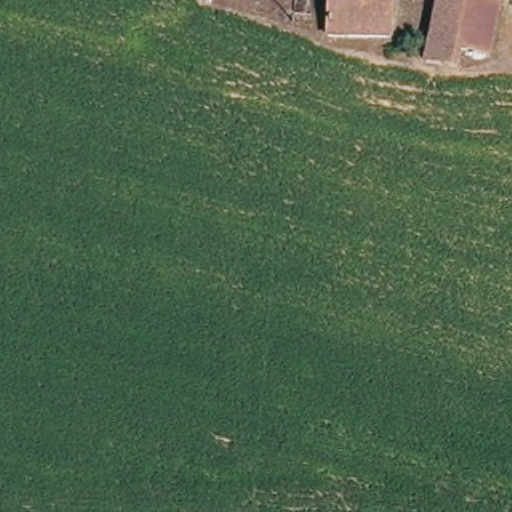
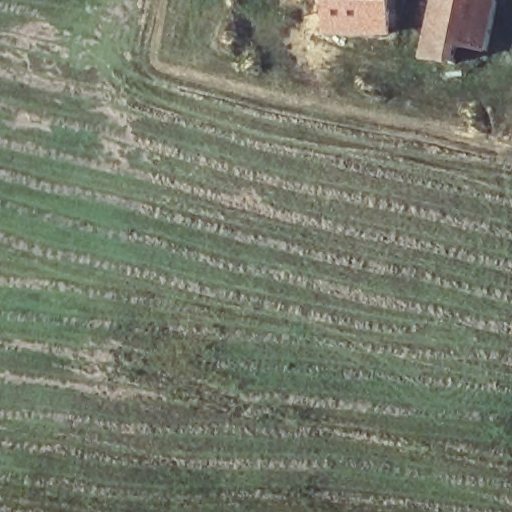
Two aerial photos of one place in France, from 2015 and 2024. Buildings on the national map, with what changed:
unchanged [(316,0),(315,14),(304,12),(305,0),(316,0)]
unchanged [(333,22),(333,0),(393,0),(391,37),(333,34),(333,22)]
unchanged [(467,48),(453,44),(454,36),(431,31),(438,0),(483,0),(489,1),(499,4),(489,39),(487,53),(467,48)]
unchanged [(454,36),(453,44),(467,48),(462,69),(424,60),(431,31),(454,36)]

